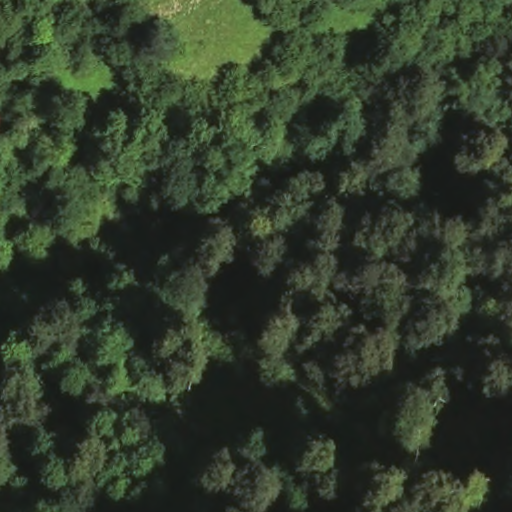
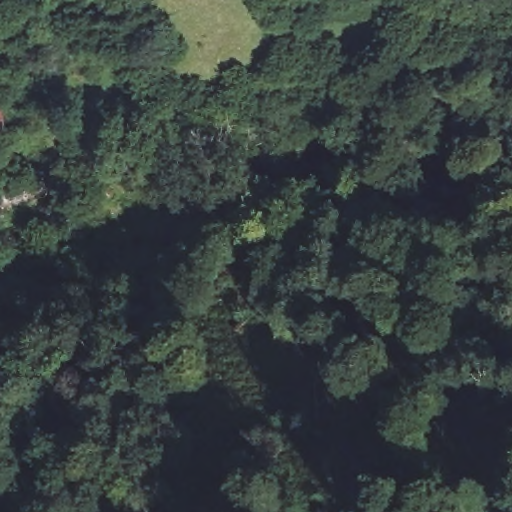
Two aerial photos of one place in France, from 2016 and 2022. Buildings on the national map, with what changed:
unchanged [(7,115),(16,157),(4,161),(0,161),(0,117),(7,115)]

